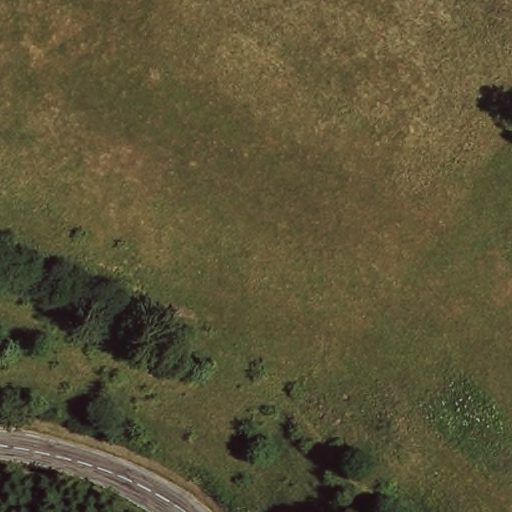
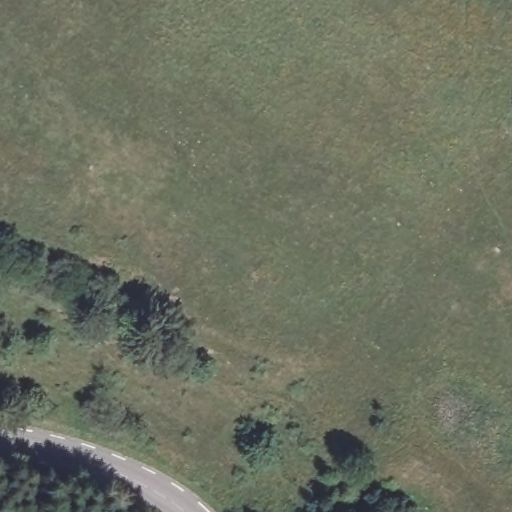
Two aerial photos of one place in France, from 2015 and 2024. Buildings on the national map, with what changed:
[]

